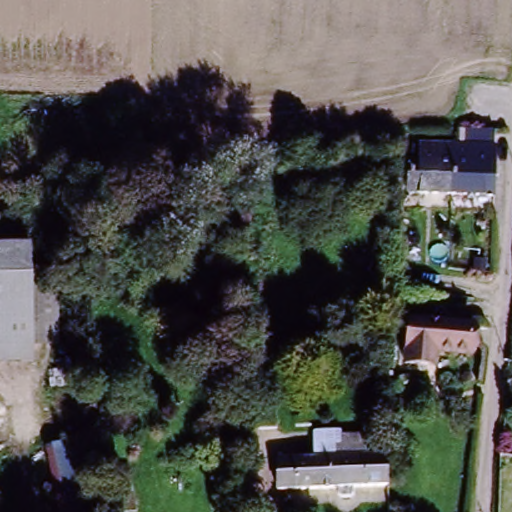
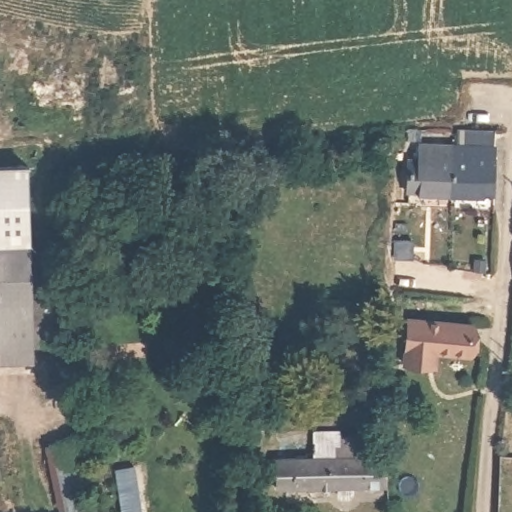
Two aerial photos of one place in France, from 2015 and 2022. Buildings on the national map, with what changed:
unchanged [(462,130),(477,130),(502,129),(490,203),(443,200),(442,152),(457,152),(462,130)]
unchanged [(397,199),(397,170),(407,170),(406,152),(442,152),(443,200),(397,199)]
new [(32,244),(0,245),(0,169),(30,169),(32,244)]
unchanged [(32,271),(59,272),(59,347),(36,348),(36,365),(0,366),(0,245),(32,244),(32,271)]
unchanged [(472,352),(435,350),(432,369),(406,367),(408,320),(472,322),(472,352)]
unchanged [(274,386),(277,417),(258,421),(253,388),(274,386)]
unchanged [(387,455),(400,458),(397,492),(277,482),(282,449),(289,450),(292,433),(320,437),(320,450),(362,455),(363,439),(387,442),(387,455)]
unchanged [(98,512),(65,512),(52,450),(85,443),(98,512)]
demolished [(142,485),(148,512),(130,512),(126,488),(142,485)]

